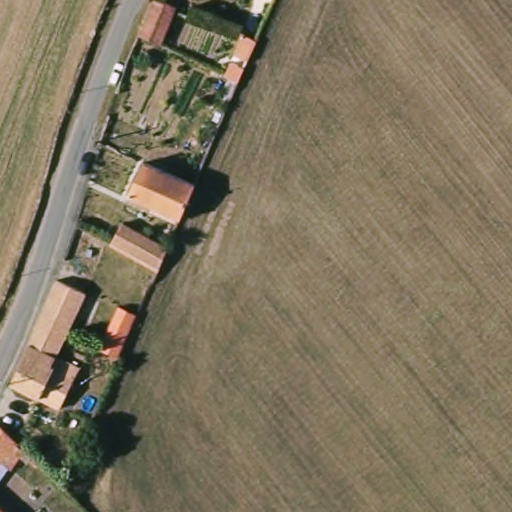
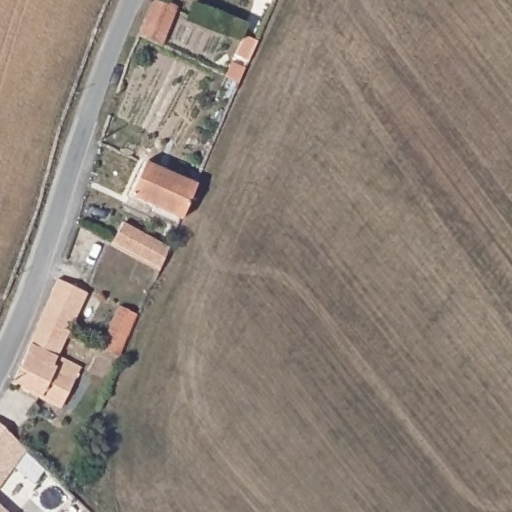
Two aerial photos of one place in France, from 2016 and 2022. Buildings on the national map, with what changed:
unchanged [(157,1),(180,11),(164,47),(141,38),(157,1)]
unchanged [(130,196),(145,164),(201,190),(186,223),(130,196)]
unchanged [(116,265),(120,252),(125,255),(131,241),(141,246),(135,259),(160,270),(155,282),(116,265)]
unchanged [(84,296),(62,358),(84,368),(67,410),(14,385),(55,285),(84,296)]
unchanged [(6,470),(0,465),(0,430),(20,449),(6,470)]

